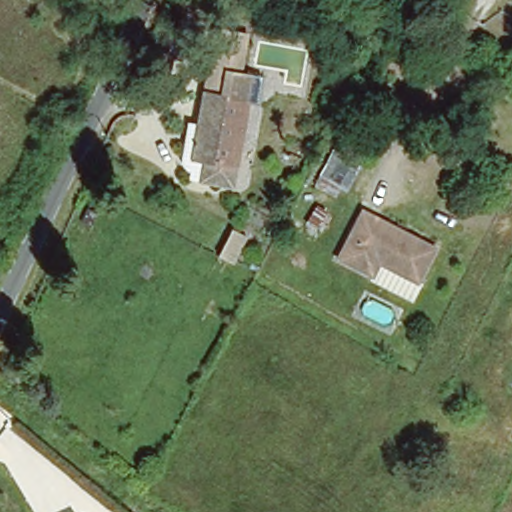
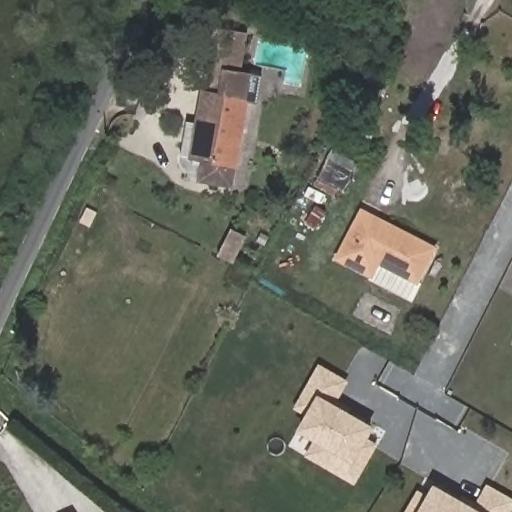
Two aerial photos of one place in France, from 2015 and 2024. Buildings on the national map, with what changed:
unchanged [(233,185),(201,180),(205,160),(195,158),(210,68),(208,68),(215,28),(247,34),(241,72),(263,76),(258,104),(247,102),(233,185)]
unchanged [(335,263),(360,216),(431,252),(413,285),(375,266),(368,280),(335,263)]
unchanged [(233,263),(220,256),(234,230),(247,237),(233,263)]
new [(336,404),(374,428),(368,440),(377,445),(354,484),(305,455),(314,440),(297,432),(307,415),(294,408),(318,364),(348,381),(336,404)]
new [(434,485),(475,507),(487,484),(512,499),(512,510),(511,512),(405,512),(417,490),(428,497),(434,485)]

